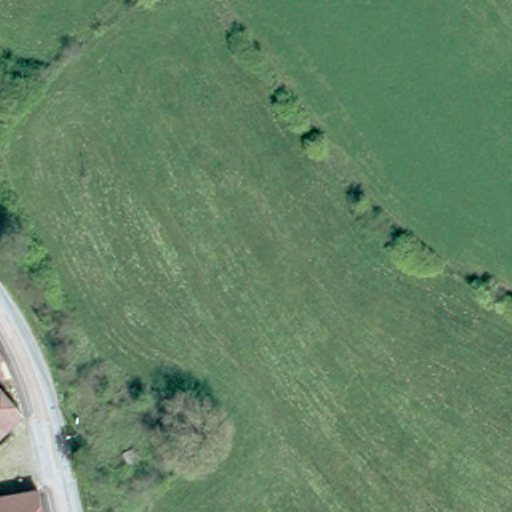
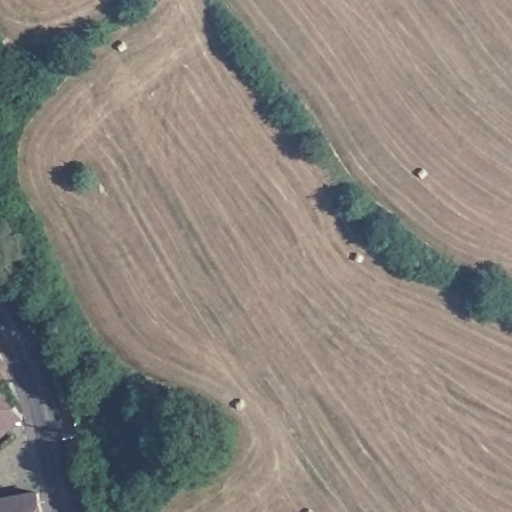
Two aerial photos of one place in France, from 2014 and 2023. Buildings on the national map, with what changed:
unchanged [(0,363),(0,351),(5,360),(0,363)]
unchanged [(0,380),(0,371),(4,378),(0,380)]
unchanged [(0,440),(0,390),(24,418),(0,440)]
unchanged [(140,459),(127,465),(122,455),(135,449),(140,459)]
unchanged [(0,481),(15,478),(19,495),(0,499),(0,481)]
unchanged [(38,491),(42,512),(0,512),(0,499),(19,495),(38,491)]

